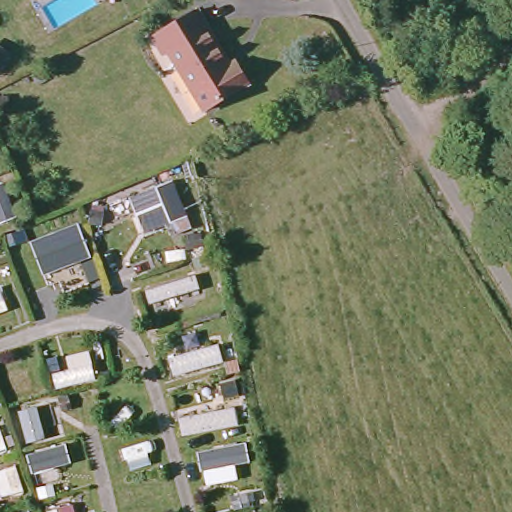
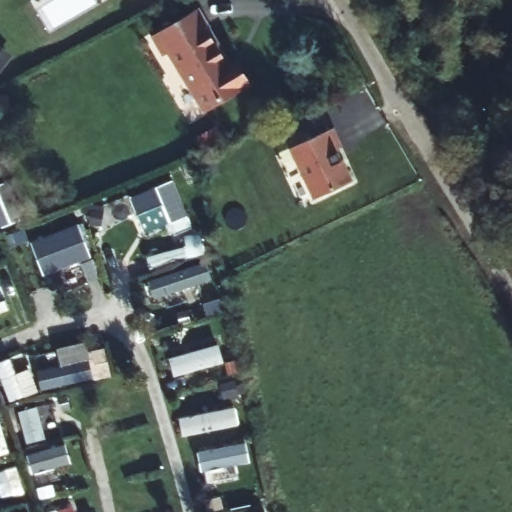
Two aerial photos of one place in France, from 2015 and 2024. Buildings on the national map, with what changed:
unchanged [(208,32),(206,32),(217,55),(215,57),(222,72),(231,69),(242,92),(197,114),(166,52),(160,56),(150,37),(199,12),(208,32)]
new [(331,129),(340,148),(335,150),(351,182),(315,200),(290,149),(331,129)]

